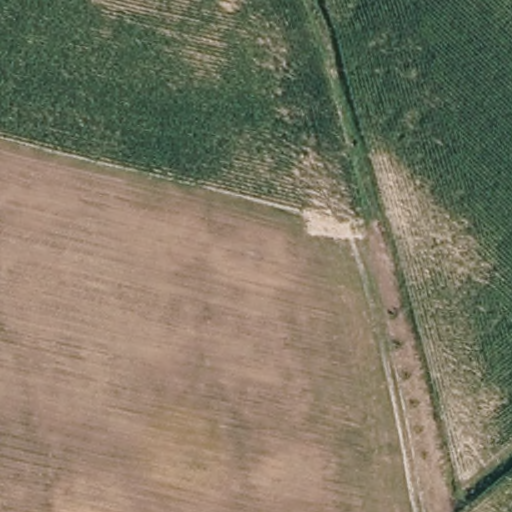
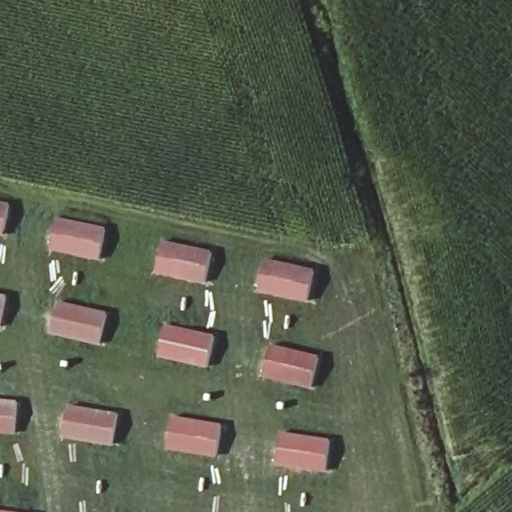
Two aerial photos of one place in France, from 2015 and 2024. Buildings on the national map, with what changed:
new [(6,237),(0,235),(0,201),(12,203),(6,237)]
new [(57,217),(107,227),(99,261),(52,250),(57,217)]
new [(163,239),(212,250),(205,284),(157,274),(163,239)]
new [(262,256),(316,268),(307,302),(253,290),(262,256)]
new [(0,325),(0,294),(7,295),(0,325)]
new [(58,301),(107,312),(99,345),(52,334),(58,301)]
new [(166,324),(215,335),(207,369),(159,358),(166,324)]
new [(272,344),(321,355),(312,390),(263,379),(272,344)]
new [(15,436),(0,434),(0,399),(18,401),(15,436)]
new [(68,404),(119,413),(112,446),(63,439),(68,404)]
new [(172,415),(222,423),(216,457),(167,450),(172,415)]
new [(277,430),(332,438),(324,472),(272,465),(277,430)]
new [(0,510),(17,512),(0,512),(0,510)]

